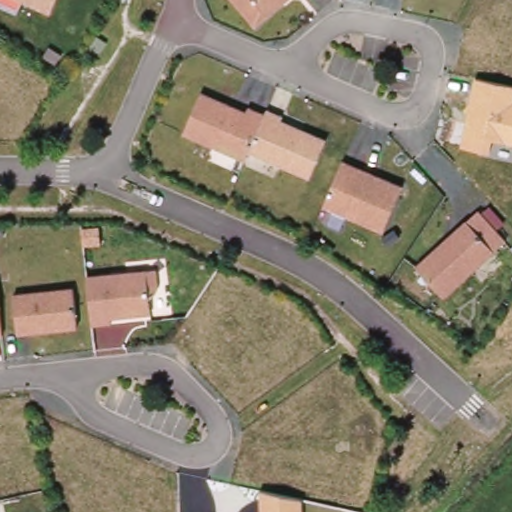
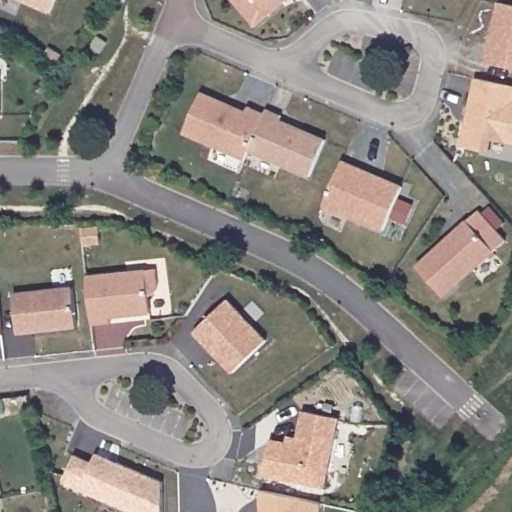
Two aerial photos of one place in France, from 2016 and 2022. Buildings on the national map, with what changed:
unchanged [(11,0),(59,0),(50,19),(11,0)]
unchanged [(229,0),(295,0),(253,31),(229,0)]
new [(499,3),(512,6),(512,68),(486,63),(499,3)]
unchanged [(476,79),(512,86),(512,144),(493,141),(491,154),(461,146),(476,79)]
unchanged [(247,114),(249,109),(328,142),(310,181),(250,154),(247,164),(182,137),(201,95),(247,114)]
unchanged [(403,189),(384,235),(324,209),(343,164),(403,189)]
unchanged [(506,245),(444,299),(417,270),(477,215),(506,245)]
unchanged [(156,271),(157,295),(148,298),(147,318),(110,321),(111,325),(91,326),(88,278),(156,271)]
unchanged [(74,291),(77,331),(17,337),(14,296),(74,291)]
new [(227,300),(266,341),(233,373),(194,332),(227,300)]
unchanged [(0,340),(0,327),(1,340),(0,340)]
new [(286,443),(287,436),(298,439),(304,411),(339,419),(324,488),(263,475),(270,440),(286,443)]
new [(74,455),(92,463),(96,454),(162,482),(163,512),(141,512),(106,497),(100,500),(63,483),(74,455)]
unchanged [(261,491),(302,500),(302,512),(260,512),(261,491)]

